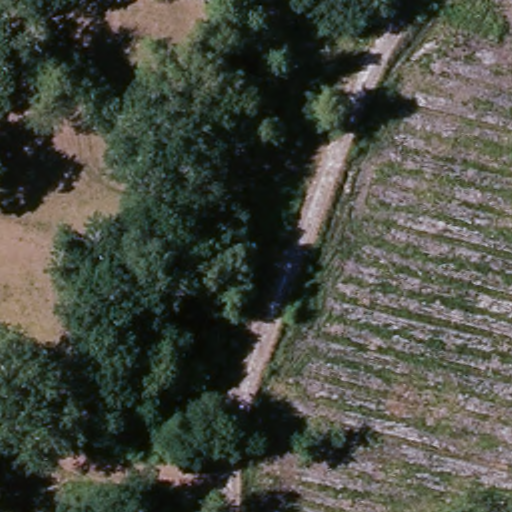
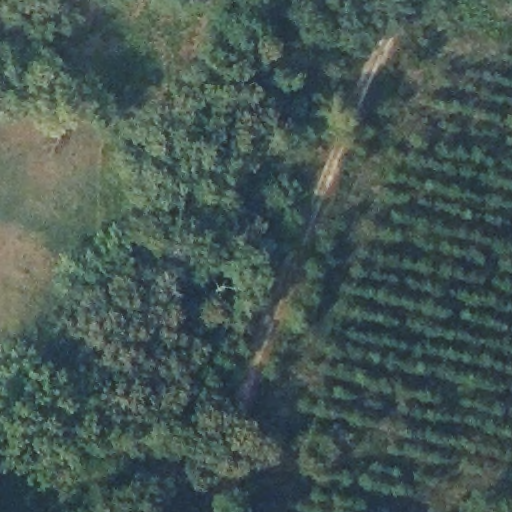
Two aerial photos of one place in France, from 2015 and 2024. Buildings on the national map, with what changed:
[]

